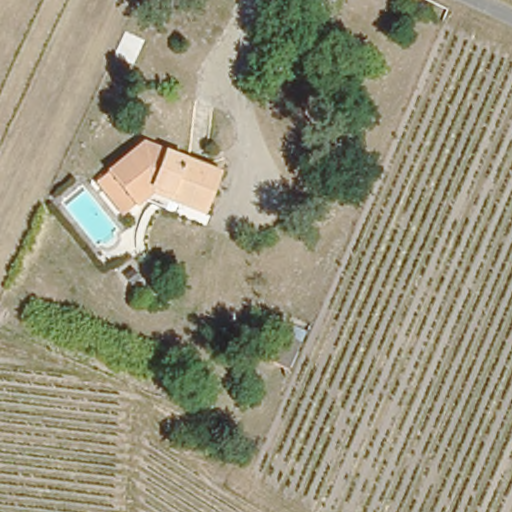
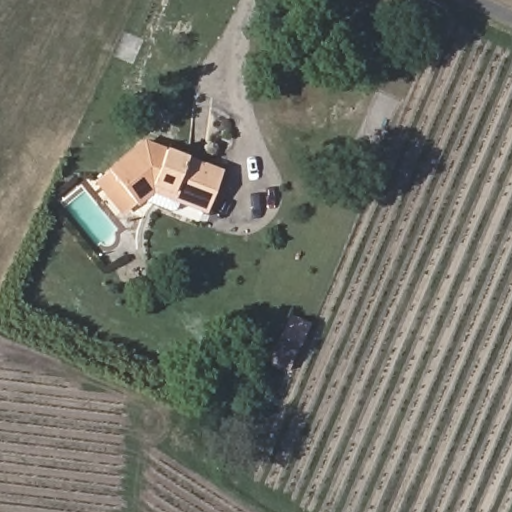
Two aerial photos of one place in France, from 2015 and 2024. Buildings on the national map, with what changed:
unchanged [(112,198),(99,179),(147,141),(229,175),(212,217),(172,201),(150,192),(147,198),(137,206),(125,216),(112,198)]

